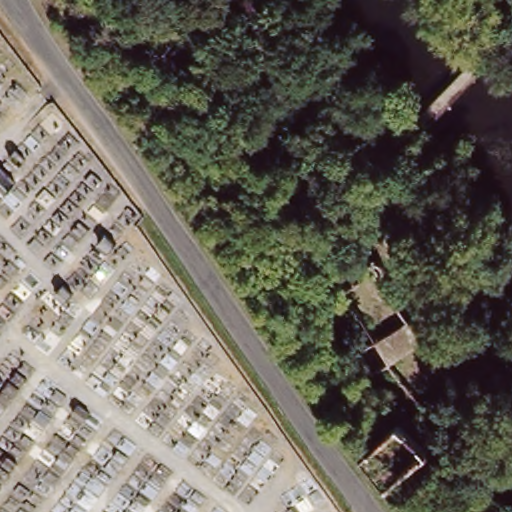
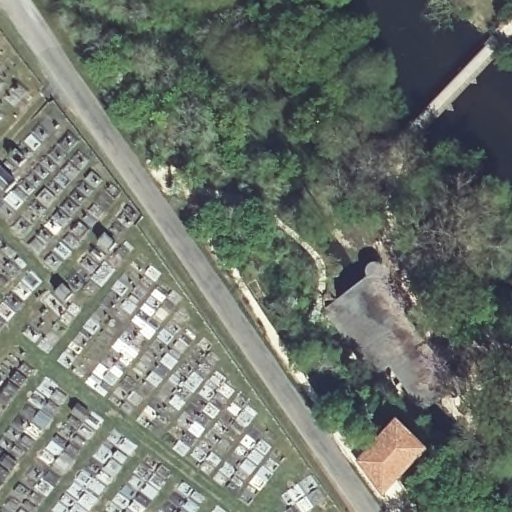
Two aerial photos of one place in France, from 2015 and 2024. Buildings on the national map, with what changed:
unchanged [(423,335),(391,360),(375,342),(407,317),(423,335)]
new [(398,419),(431,450),(383,496),(355,461),(398,419)]

